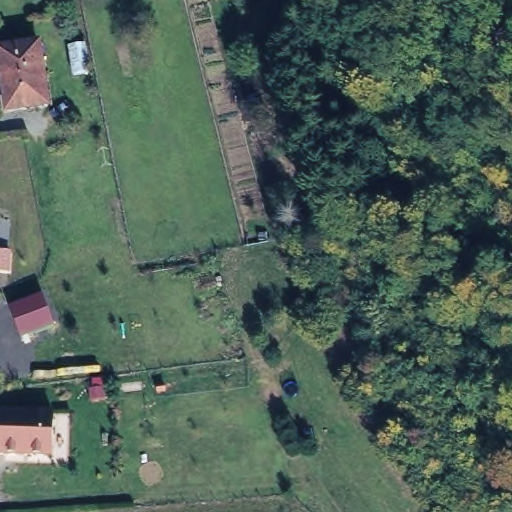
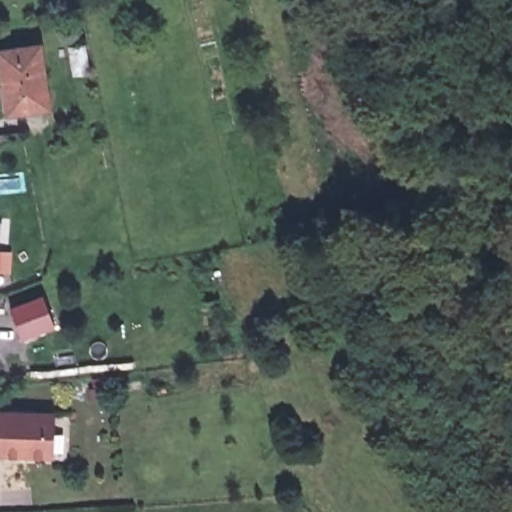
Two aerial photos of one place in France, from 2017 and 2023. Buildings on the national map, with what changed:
unchanged [(7,102),(0,53),(0,42),(38,37),(45,96),(7,102)]
unchanged [(0,458),(0,408),(53,409),(54,459),(0,458)]

